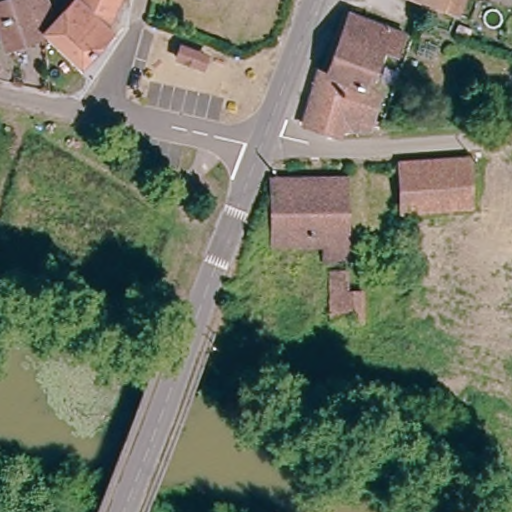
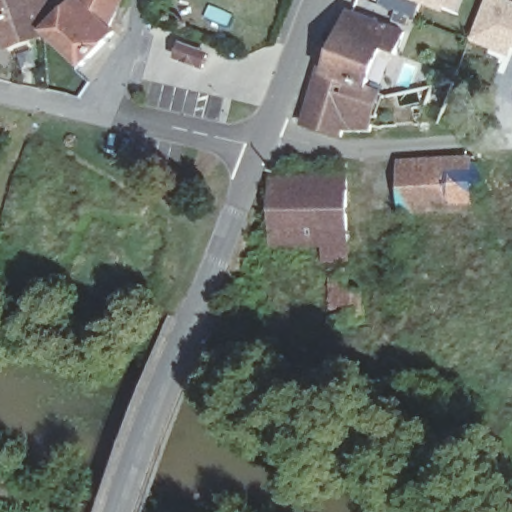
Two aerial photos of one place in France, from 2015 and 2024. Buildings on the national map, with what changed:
unchanged [(54,17),(38,23),(42,36),(11,48),(9,49),(0,26),(0,4),(11,0),(48,0),(54,17)]
unchanged [(78,0),(123,0),(110,28),(115,33),(84,67),(47,33),(78,0)]
unchanged [(461,14),(424,0),(466,0),(461,14)]
new [(470,43),(488,0),(506,0),(512,2),(512,51),(510,57),(470,43)]
unchanged [(320,68),(329,69),(351,12),(406,34),(398,54),(383,49),(368,89),(382,93),(372,126),(371,133),(341,133),(340,136),(303,125),(320,68)]
unchanged [(209,55),(204,68),(179,59),(184,47),(209,55)]
unchanged [(472,207),(406,212),(402,164),(470,159),(472,207)]
unchanged [(347,178),(348,259),(324,258),(324,246),(275,246),(274,179),(347,178)]
unchanged [(349,272),(350,293),(363,293),(362,321),(332,321),(332,271),(349,272)]

